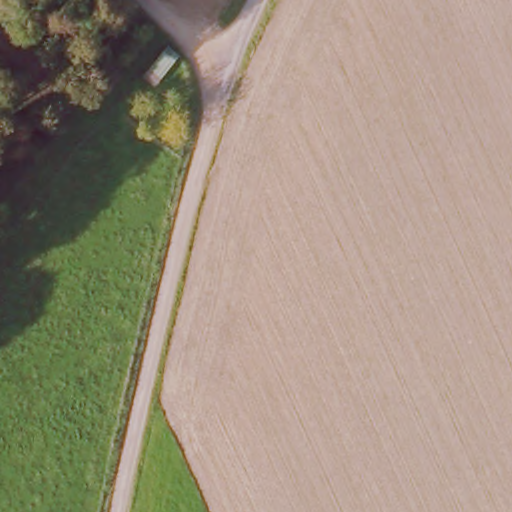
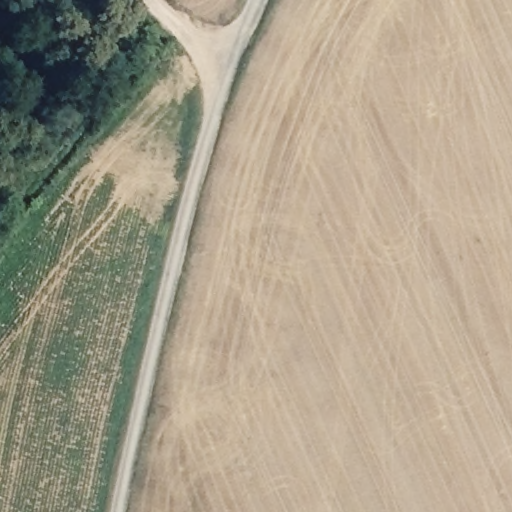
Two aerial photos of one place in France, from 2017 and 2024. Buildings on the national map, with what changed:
unchanged [(145,68),(165,45),(180,58),(160,82),(145,68)]

